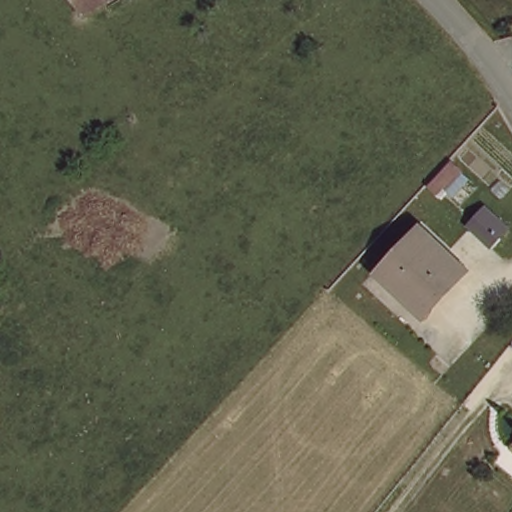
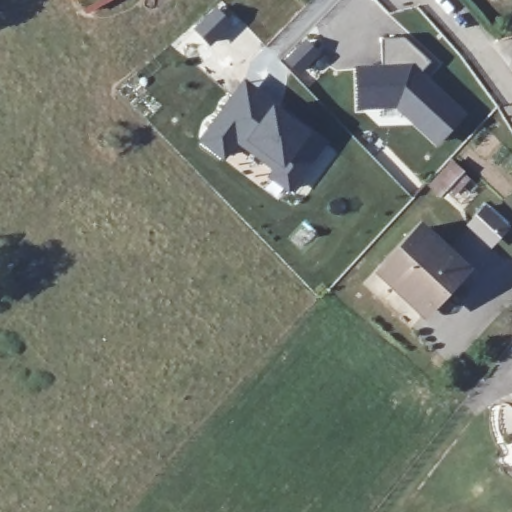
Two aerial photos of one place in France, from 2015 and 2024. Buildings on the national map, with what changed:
unchanged [(86,0),(104,0),(90,7),(86,0)]
new [(403,38),(430,62),(421,72),(466,114),(436,146),(396,109),(356,110),(355,66),(383,65),(382,39),(403,38)]
new [(244,79),(327,141),(289,193),(268,177),(273,171),(236,142),(222,160),(196,140),(244,79)]
unchanged [(463,262),(425,307),(378,266),(418,221),(463,262)]

